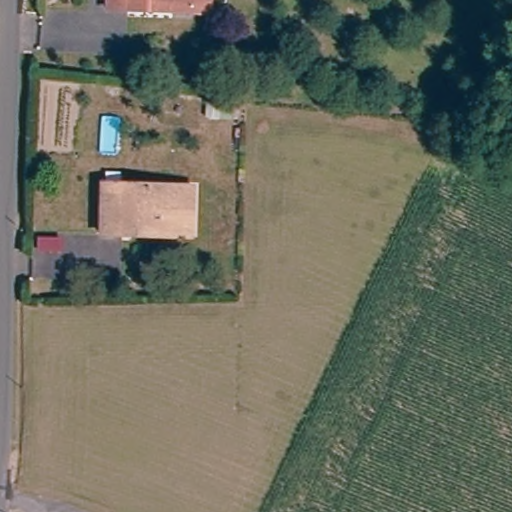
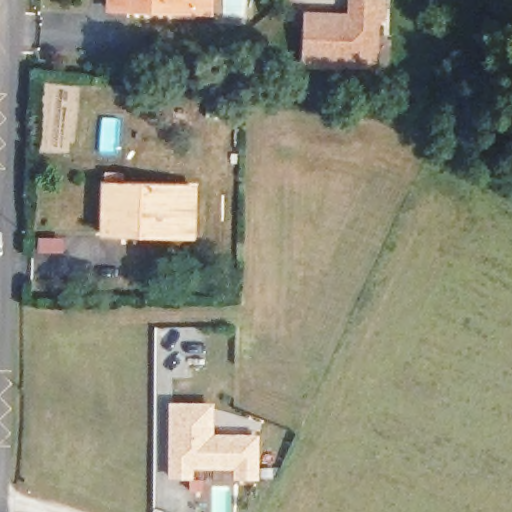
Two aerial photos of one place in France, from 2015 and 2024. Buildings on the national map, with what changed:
unchanged [(118,15),(118,0),(216,0),(216,13),(197,12),(176,13),(135,15),(118,15)]
new [(302,66),(304,12),(347,12),(347,0),(386,0),(385,23),(381,23),(379,69),(302,66)]
unchanged [(106,246),(107,206),(107,193),(123,192),(191,191),(188,232),(188,244),(123,245),(106,246)]
new [(215,403),(214,434),(259,434),(259,480),(234,480),(233,470),(194,470),(194,481),(169,481),(169,403),(215,403)]

